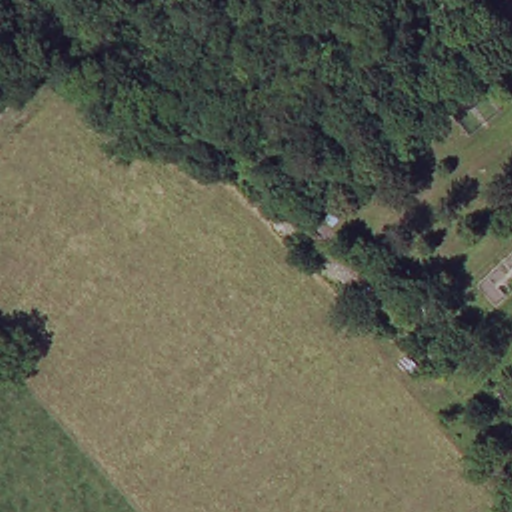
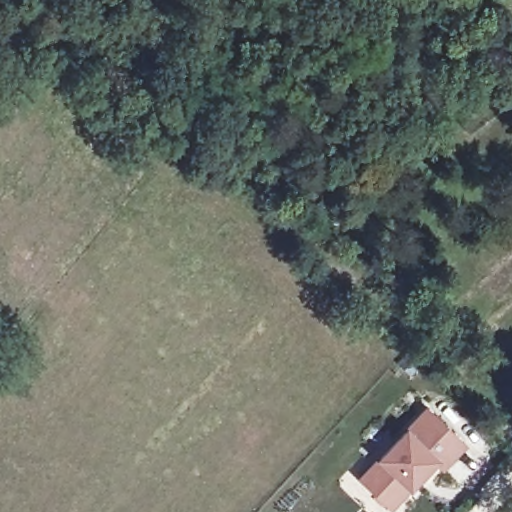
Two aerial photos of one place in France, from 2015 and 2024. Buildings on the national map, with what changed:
unchanged [(335,226),(327,217),(343,199),(353,208),(335,226)]
unchanged [(402,364),(410,356),(420,365),(411,373),(402,364)]
new [(429,411),(465,445),(443,467),(436,461),(392,507),(362,480),(429,411)]

